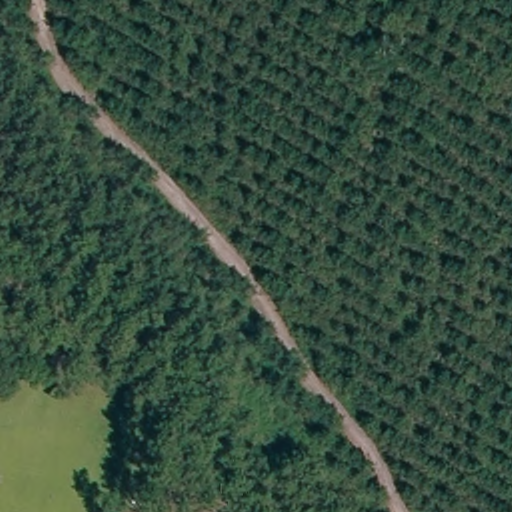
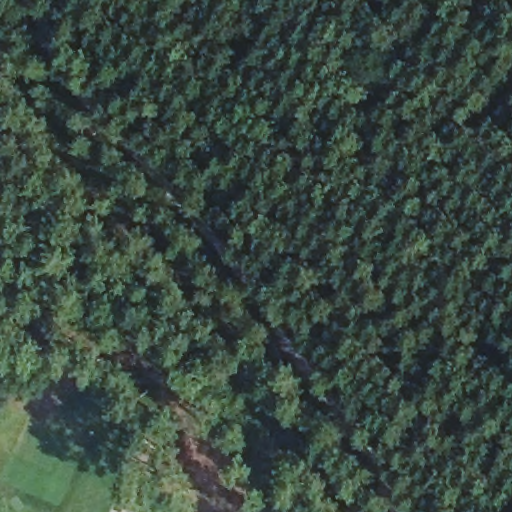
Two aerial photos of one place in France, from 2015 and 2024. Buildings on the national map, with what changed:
[]

